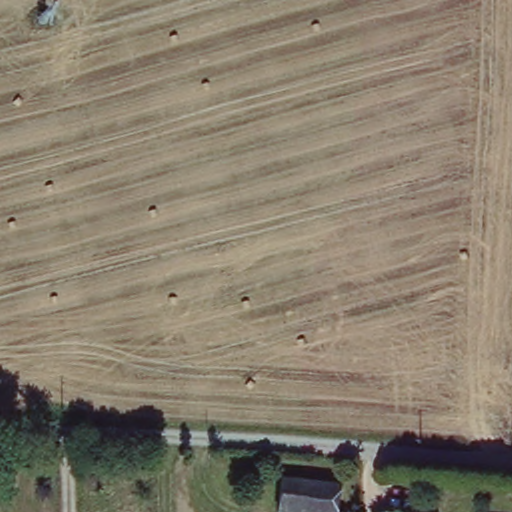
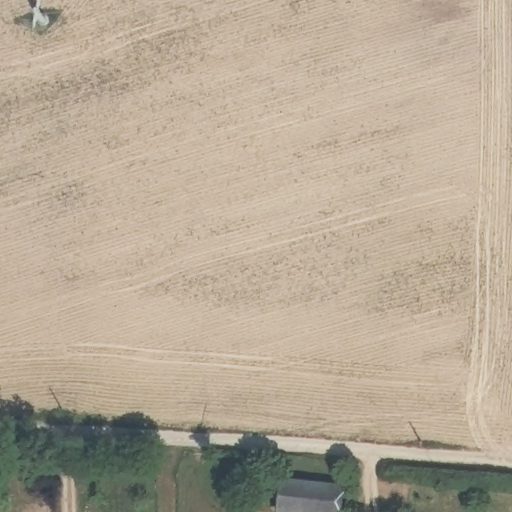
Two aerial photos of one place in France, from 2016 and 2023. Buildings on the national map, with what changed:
unchanged [(339,512),(291,512),(285,512),(287,477),(341,483),(339,512)]

